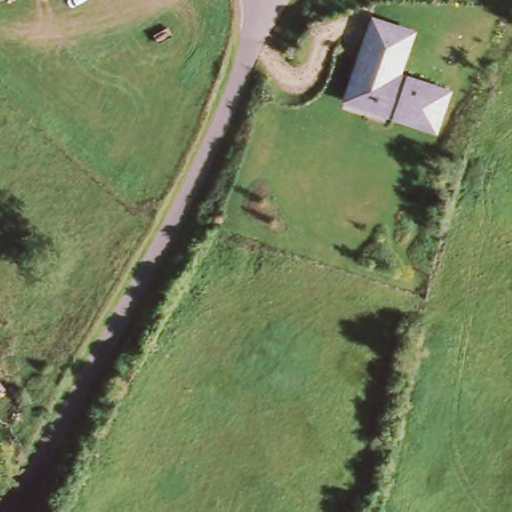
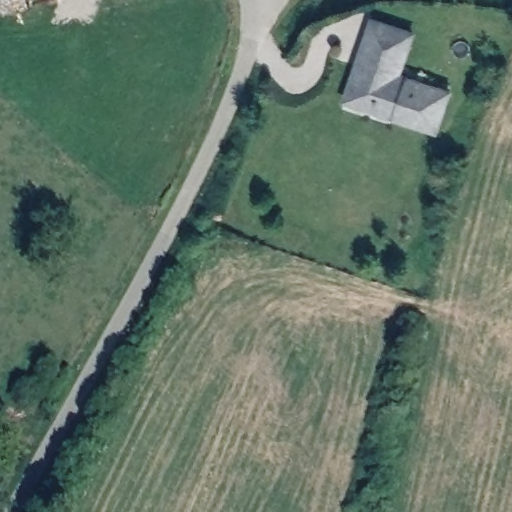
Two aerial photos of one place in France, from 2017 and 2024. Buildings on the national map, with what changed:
unchanged [(356,70),(365,42),(372,22),(402,34),(412,37),(406,55),(398,79),(448,97),(434,138),(391,122),(344,105),(347,96),(356,70)]

